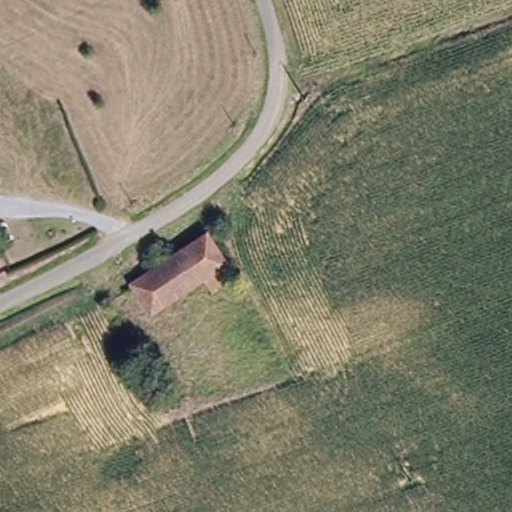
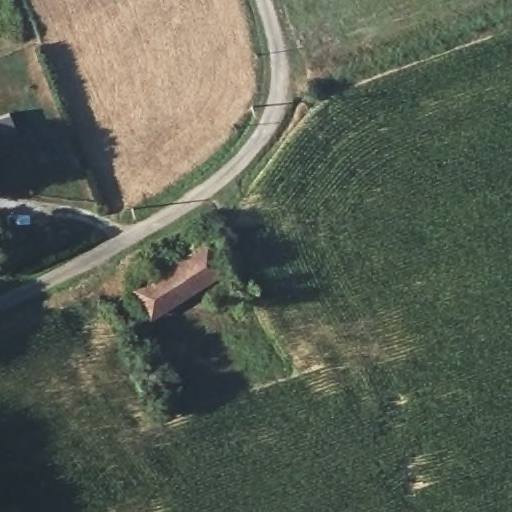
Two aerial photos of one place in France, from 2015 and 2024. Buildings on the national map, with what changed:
unchanged [(230,275),(207,289),(198,276),(145,309),(126,280),(203,230),(230,275)]

